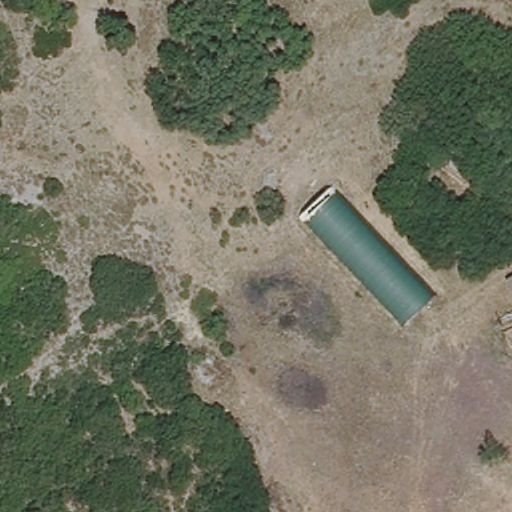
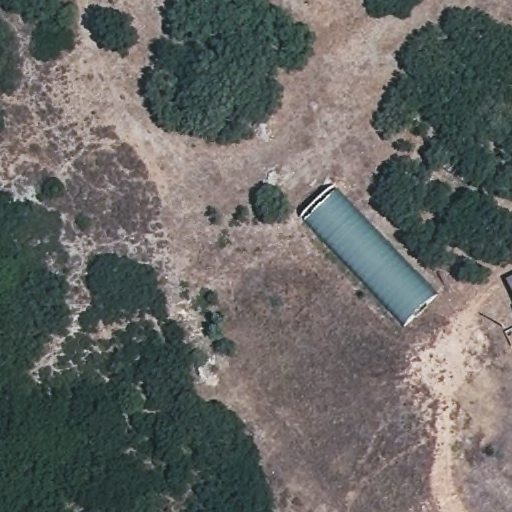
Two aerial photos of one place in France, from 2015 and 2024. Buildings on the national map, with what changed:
unchanged [(304,220),(336,187),(449,297),(411,328),(304,220)]

